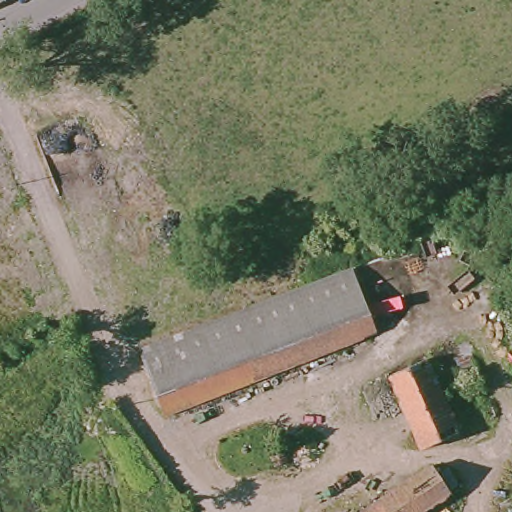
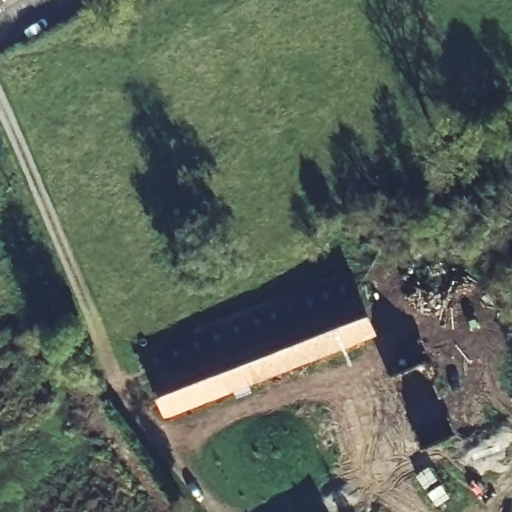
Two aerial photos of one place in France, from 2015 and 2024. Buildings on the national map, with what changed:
unchanged [(137,351),(307,287),(326,281),(334,296),(335,300),(145,370),(137,351)]
unchanged [(159,406),(145,370),(335,300),(348,295),(354,308),(363,330),(159,406)]
unchanged [(399,406),(386,412),(375,387),(389,381),(367,328),(381,322),(403,374),(462,349),(479,386),(449,398),(444,400),(457,436),(419,452),(399,406)]
unchanged [(440,461),(457,490),(424,512),(359,512),(422,472),(440,461)]

